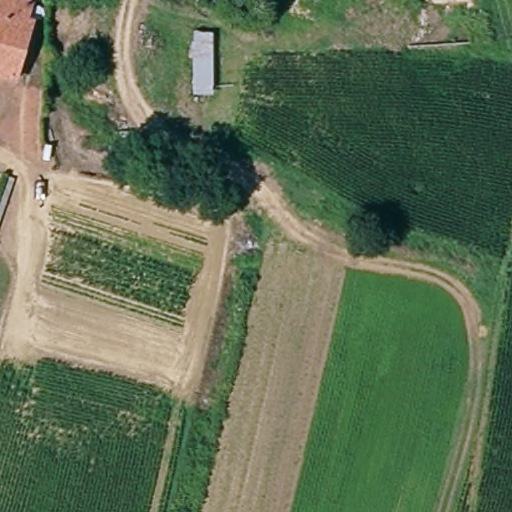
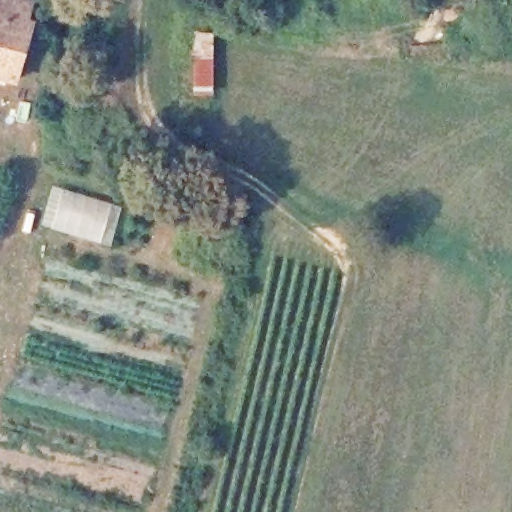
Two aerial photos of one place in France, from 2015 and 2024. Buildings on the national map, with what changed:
unchanged [(1,8),(36,15),(22,83),(0,79),(0,13),(1,8)]
unchanged [(216,91),(198,91),(199,34),(217,34),(216,91)]
new [(52,184),(122,206),(110,247),(40,224),(52,184)]

